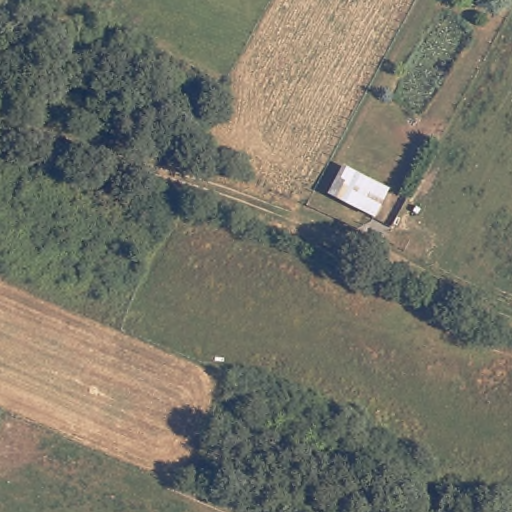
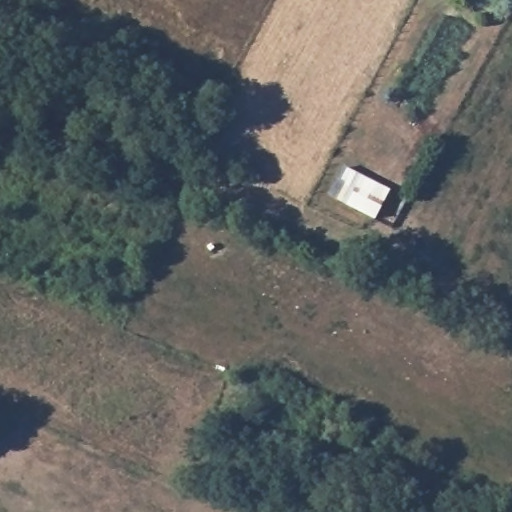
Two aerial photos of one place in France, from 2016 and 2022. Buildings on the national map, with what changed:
unchanged [(390,187),(375,221),(323,195),(340,161),(390,187)]

